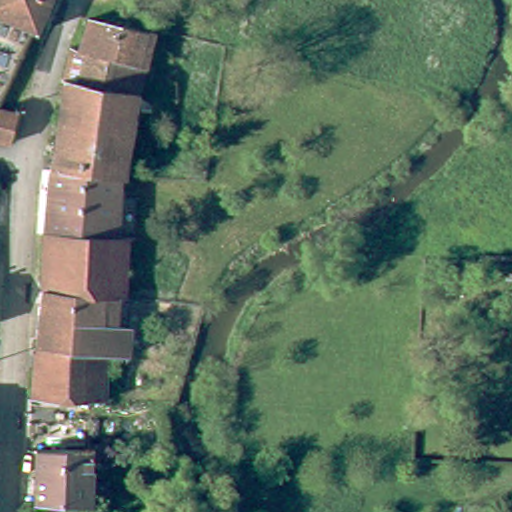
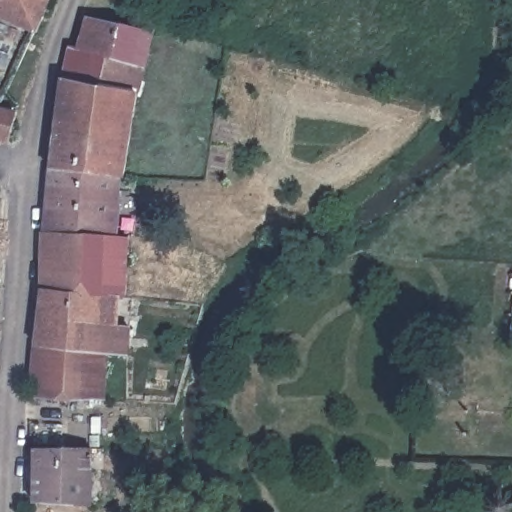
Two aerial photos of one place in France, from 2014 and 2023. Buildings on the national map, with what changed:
unchanged [(44,13),(37,27),(6,10),(0,7),(0,0),(49,0),(44,13)]
unchanged [(61,88),(70,45),(80,47),(88,14),(155,27),(122,173),(51,165),(61,88)]
unchanged [(13,110),(22,113),(16,144),(0,140),(0,106),(13,110)]
unchanged [(122,173),(114,212),(45,210),(51,165),(122,173)]
unchanged [(45,210),(114,212),(110,229),(44,225),(45,210)]
unchanged [(112,296),(105,295),(44,286),(44,225),(110,229),(121,229),(112,296)]
unchanged [(105,318),(130,320),(125,351),(107,350),(38,347),(44,286),(105,295),(105,318)]
unchanged [(107,350),(107,396),(33,395),(38,347),(107,350)]
unchanged [(95,502),(37,501),(38,446),(43,446),(95,444),(95,502)]

